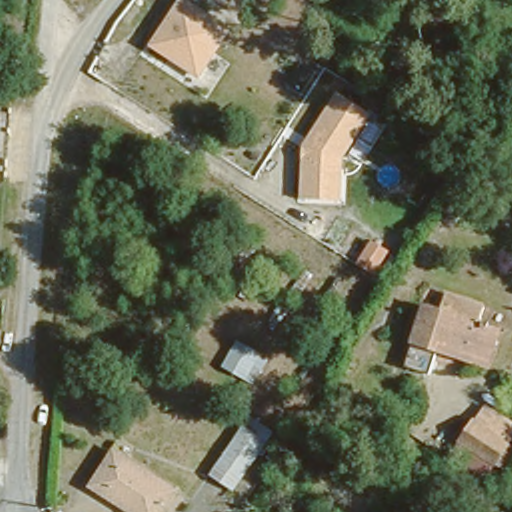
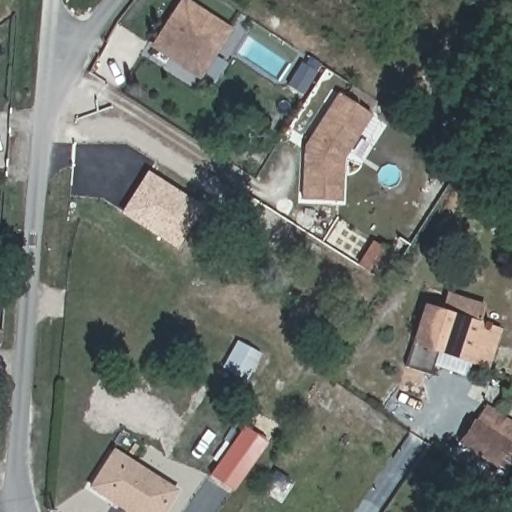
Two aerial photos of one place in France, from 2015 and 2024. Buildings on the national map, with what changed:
unchanged [(182,0),(190,0),(235,27),(200,79),(151,48),(182,0)]
unchanged [(345,158),(343,199),(302,198),(306,145),(340,94),(372,115),(345,158)]
new [(147,170),(202,204),(176,249),(120,213),(147,170)]
unchanged [(436,347),(411,338),(425,299),(499,325),(494,339),(486,364),(436,347)]
unchanged [(267,357),(254,384),(219,366),(232,340),(267,357)]
unchanged [(503,443),(490,464),(455,441),(469,419),(503,443)]
unchanged [(267,438),(234,485),(212,469),(245,422),(267,438)]
unchanged [(175,486),(157,512),(138,512),(119,499),(116,503),(87,484),(114,446),(175,486)]

